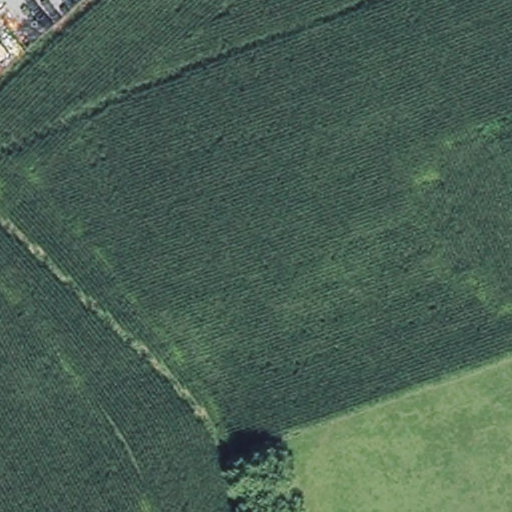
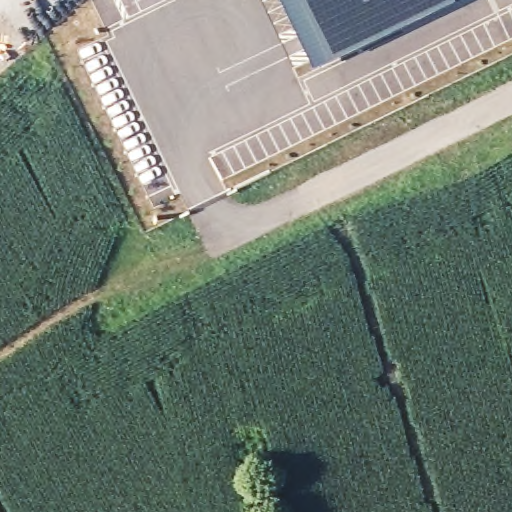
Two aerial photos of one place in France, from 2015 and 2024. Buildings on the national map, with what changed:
new [(312,62),(282,0),(445,0),(312,62)]

